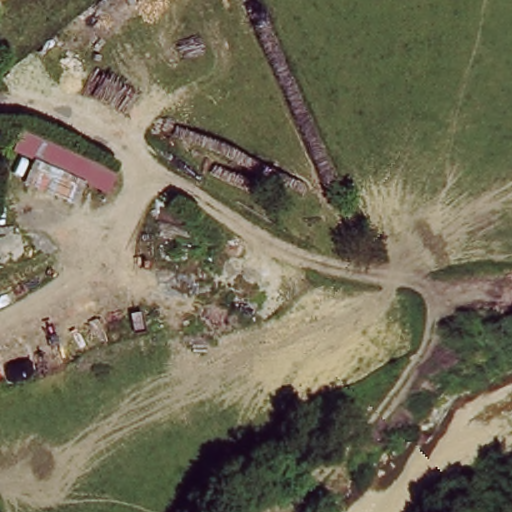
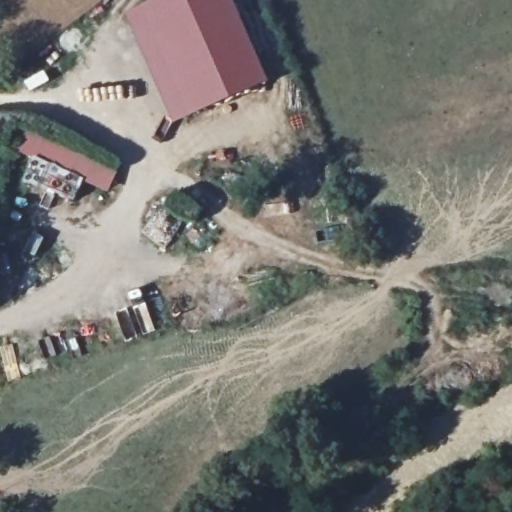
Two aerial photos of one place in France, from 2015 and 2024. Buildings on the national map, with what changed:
new [(157,0),(232,0),(269,84),(175,125),(125,14),(157,0)]
unchanged [(120,170),(110,194),(82,182),(75,203),(21,180),(33,158),(12,149),(20,126),(120,170)]

